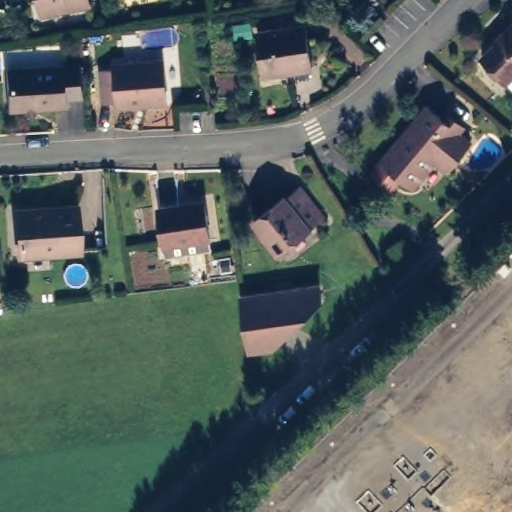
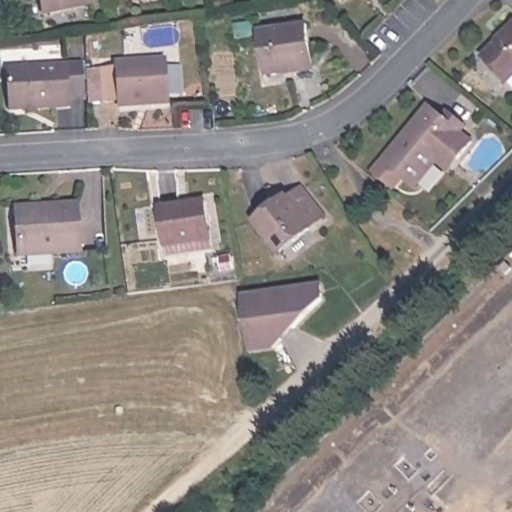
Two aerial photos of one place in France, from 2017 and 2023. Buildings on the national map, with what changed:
unchanged [(89,2),(43,12),(41,0),(89,0),(89,2)]
unchanged [(306,28),(312,72),(264,78),(259,34),(306,28)]
unchanged [(512,89),(481,57),(512,28),(512,89)]
unchanged [(101,68),(116,67),(116,62),(164,59),(167,101),(119,105),(118,100),(103,101),(101,68)]
unchanged [(68,60),(69,101),(8,104),(5,62),(68,60)]
unchanged [(379,181),(367,171),(422,106),(437,119),(442,113),(459,127),(454,133),(466,143),(453,160),(443,171),(431,162),(409,188),(397,178),(388,188),(379,181)]
unchanged [(274,253),(248,221),(266,207),(268,210),(281,199),(294,189),(317,217),(304,228),(304,229),(274,253)]
unchanged [(166,256),(165,245),(159,208),(204,201),(210,238),(208,238),(211,248),(166,256)]
unchanged [(36,208),(36,211),(76,208),(79,251),(19,255),(15,210),(36,208)]
unchanged [(232,297),(310,285),(312,300),(265,348),(239,352),(232,297)]

